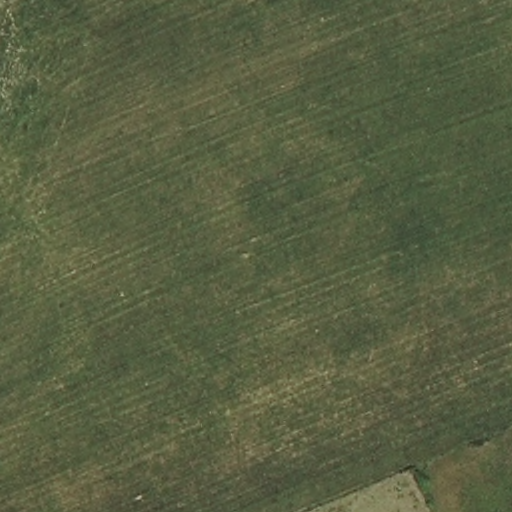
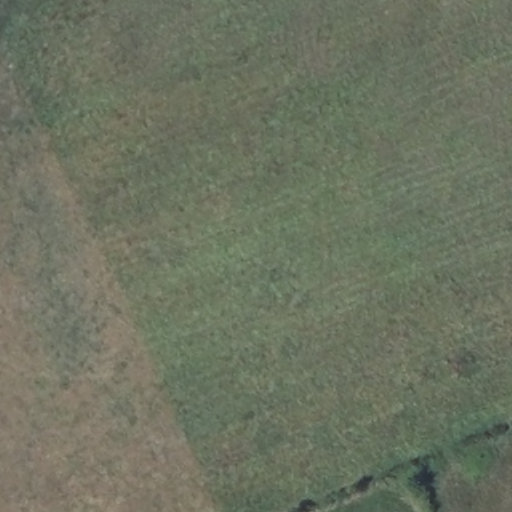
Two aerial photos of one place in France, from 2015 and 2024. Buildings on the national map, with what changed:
[]

